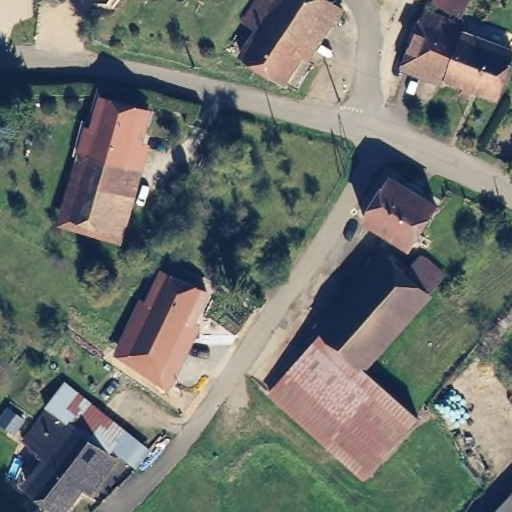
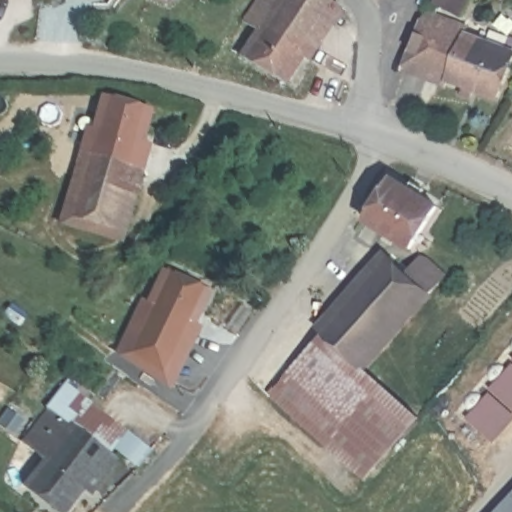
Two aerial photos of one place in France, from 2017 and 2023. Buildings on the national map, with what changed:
unchanged [(286,88),(246,63),(263,36),(286,0),(317,0),(334,10),(286,88)]
unchanged [(266,0),(286,0),(263,36),(248,27),(266,0)]
unchanged [(441,0),(475,0),(470,12),(441,0)]
unchanged [(427,76),(409,69),(432,1),(450,9),(447,20),(444,33),(427,76)]
unchanged [(444,33),(512,58),(512,108),(427,76),(444,33)]
unchanged [(112,227),(67,214),(104,93),(147,106),(112,227)]
unchanged [(410,182),(412,175),(427,184),(425,191),(440,199),(415,244),(367,214),(392,172),(410,182)]
unchanged [(410,272),(425,256),(445,273),(432,290),(364,364),(327,330),(323,328),(392,255),(410,272)]
unchanged [(157,377),(118,352),(160,269),(202,290),(157,377)]
unchanged [(364,474),(271,392),(305,354),(327,330),(364,364),(420,414),(408,426),(364,474)]
new [(512,366),(512,423),(495,444),(467,421),(512,366)]
unchanged [(47,406),(44,402),(62,379),(125,427),(64,509),(32,484),(51,459),(24,438),(47,406)]
unchanged [(512,500),(510,499),(512,496),(512,500)]
unchanged [(512,512),(498,512),(502,509),(510,499),(512,500),(512,512)]

